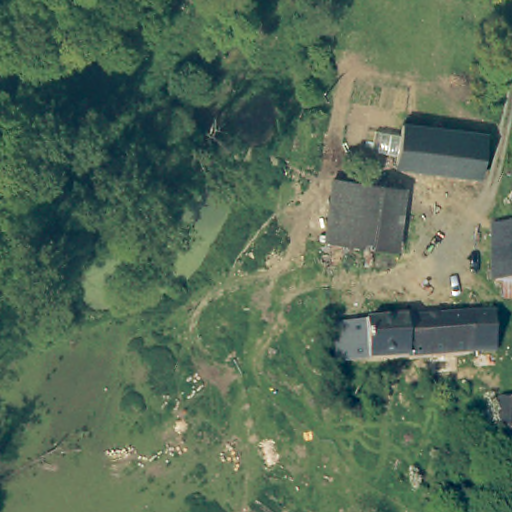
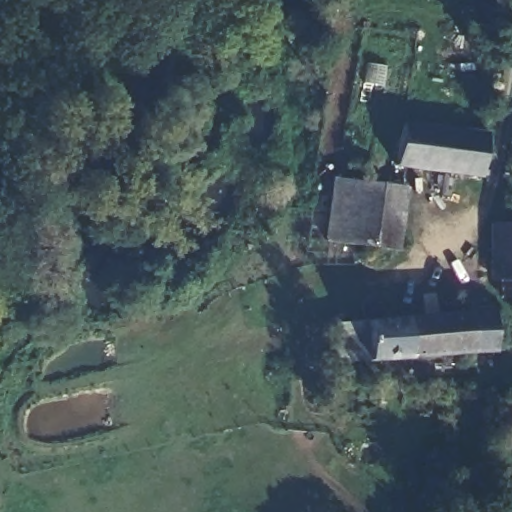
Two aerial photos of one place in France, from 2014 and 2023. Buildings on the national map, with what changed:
unchanged [(403,123),(488,133),(482,177),(396,166),(403,123)]
unchanged [(392,249),(326,241),(334,178),(400,186),(392,249)]
unchanged [(503,297),(502,280),(496,280),(495,224),(512,224),(512,297),(503,297)]
unchanged [(368,361),(367,356),(352,357),(350,324),(365,322),(365,321),(494,312),(495,351),(368,361)]
unchanged [(492,394),(512,395),(512,434),(511,436),(509,438),(506,440),(503,440),(500,440),(497,438),(495,436),(494,432),(495,426),(491,426),(492,394)]

